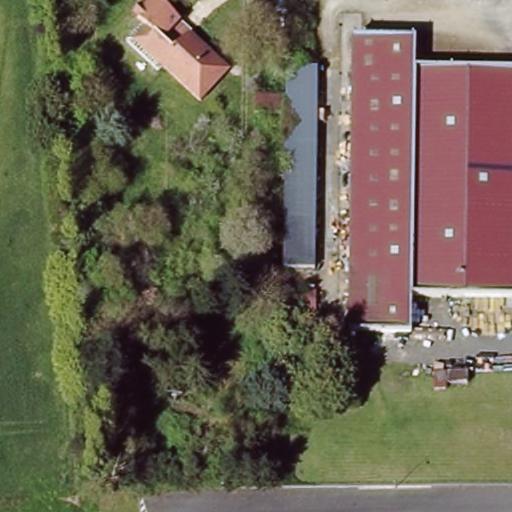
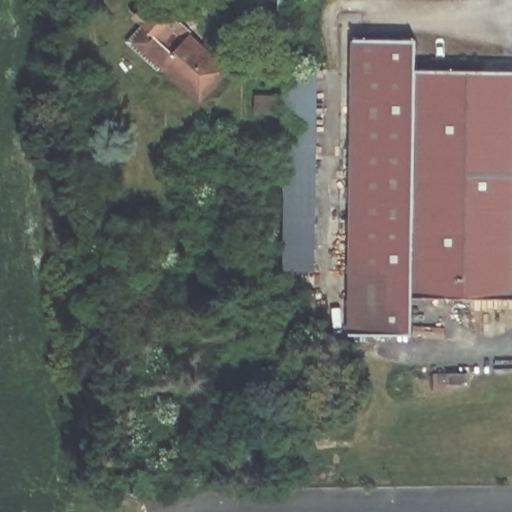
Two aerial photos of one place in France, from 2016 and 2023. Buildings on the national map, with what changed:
unchanged [(172,22),(186,36),(192,31),(229,68),(202,96),(172,66),(160,66),(132,38),(150,17),(136,5),(140,0),(162,0),(178,16),(172,22)]
unchanged [(412,334),(349,331),(362,32),(423,33),(422,68),(512,70),(512,303),(412,298),(412,334)]
unchanged [(325,65),(317,265),(286,265),(297,65),(325,65)]

